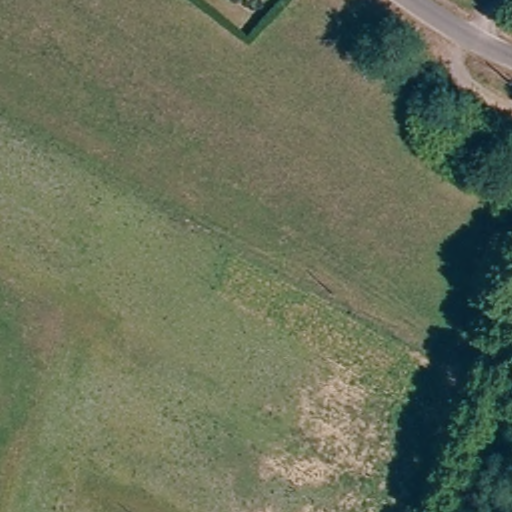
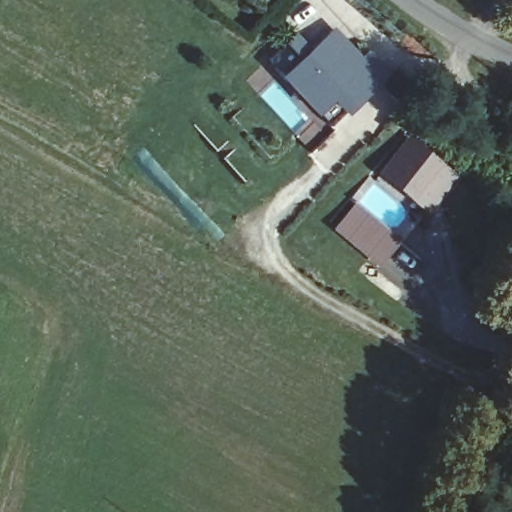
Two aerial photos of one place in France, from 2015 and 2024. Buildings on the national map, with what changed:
new [(282,75),(270,59),(287,45),(284,42),(295,32),(312,49),(335,26),(363,56),(370,50),(392,75),(347,117),(329,123),(317,116),(282,75)]
new [(377,172),(408,136),(458,176),(428,215),(377,172)]
new [(332,231),(355,202),(402,242),(378,268),(332,231)]

